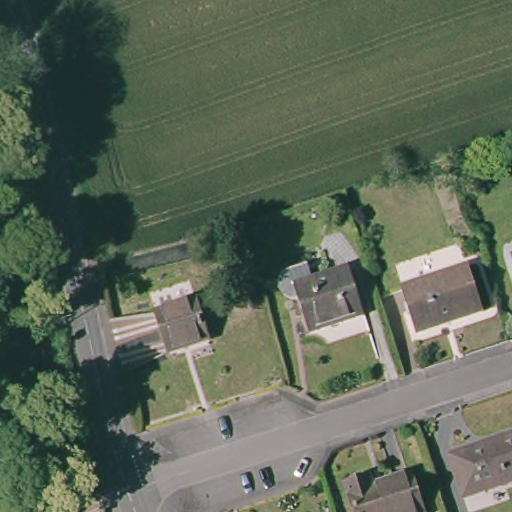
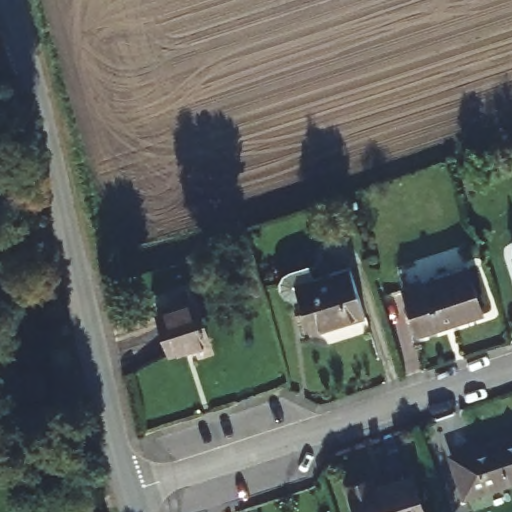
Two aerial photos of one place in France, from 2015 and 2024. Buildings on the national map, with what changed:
unchanged [(485,328),(420,350),(398,282),(463,262),(485,328)]
unchanged [(362,317),(307,335),(295,301),(292,302),(285,301),(282,300),(280,298),(277,294),(276,290),(276,286),(277,283),(279,280),(283,277),(285,275),(305,270),(309,282),(347,270),(362,317)]
unchanged [(193,301),(208,342),(167,355),(155,314),(193,301)]
unchanged [(462,493),(448,454),(512,433),(512,477),(462,493)]
unchanged [(360,475),(364,486),(407,472),(421,512),(348,512),(339,482),(360,475)]

